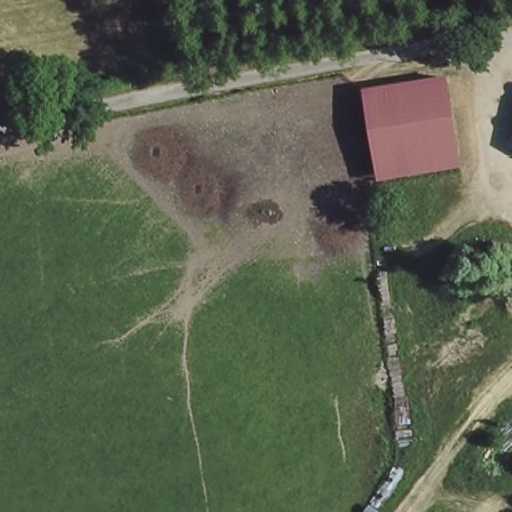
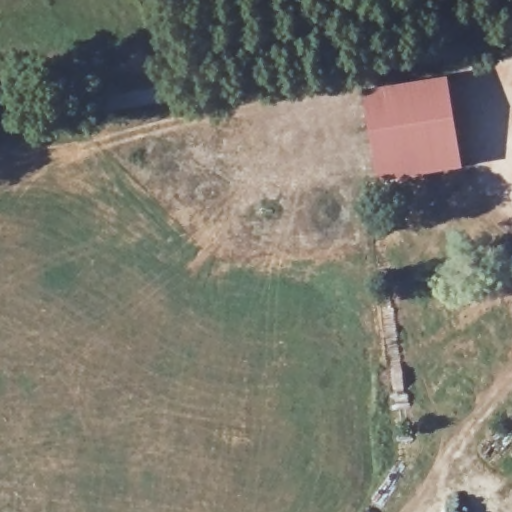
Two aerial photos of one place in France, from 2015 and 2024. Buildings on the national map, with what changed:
unchanged [(384,179),(369,90),(448,78),(464,166),(384,179)]

